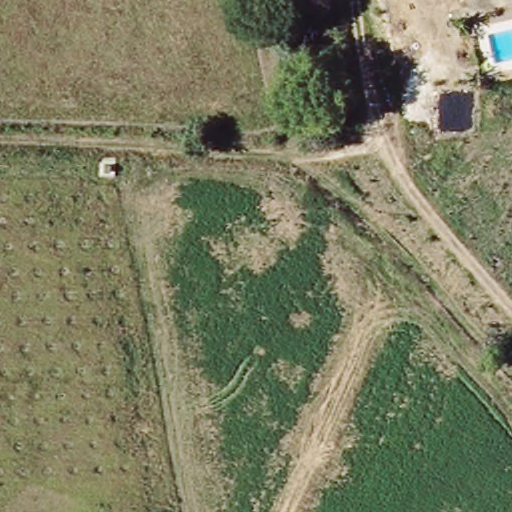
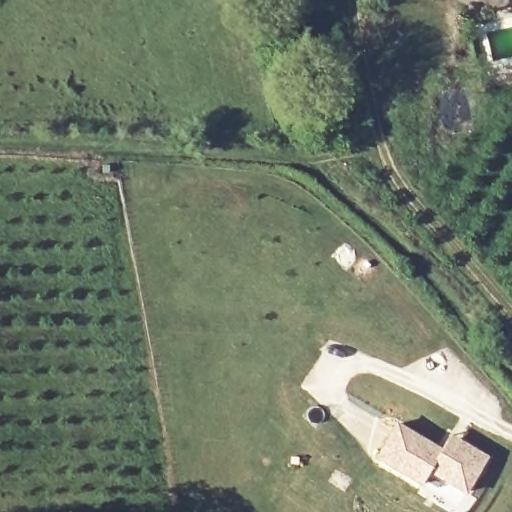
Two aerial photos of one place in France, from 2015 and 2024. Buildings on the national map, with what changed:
new [(440,450),(445,441),(448,435),(458,441),(485,457),(463,492),(427,470),(420,485),(380,461),(376,458),(383,445),(396,424),(440,450)]

